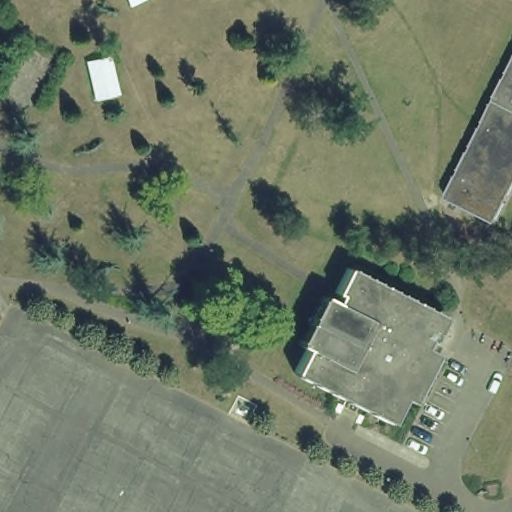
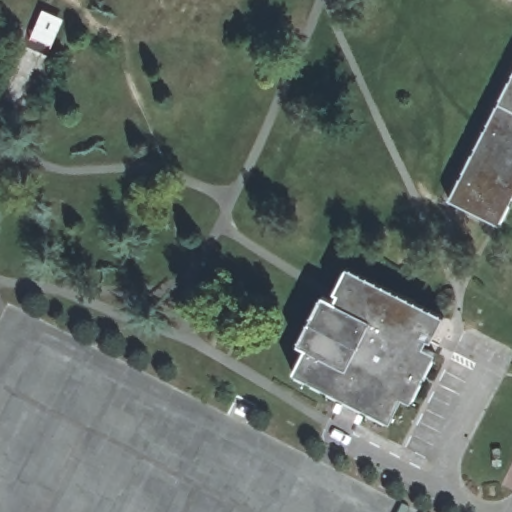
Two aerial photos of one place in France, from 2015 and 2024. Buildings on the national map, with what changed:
unchanged [(512,76),(512,197),(500,222),(450,195),(512,76)]
unchanged [(334,300),(349,267),(443,314),(429,347),(436,351),(414,399),(405,395),(389,423),(293,373),(306,347),(300,342),(324,294),(334,300)]

